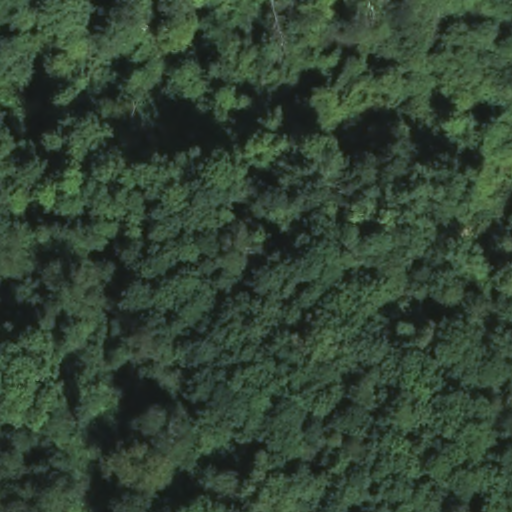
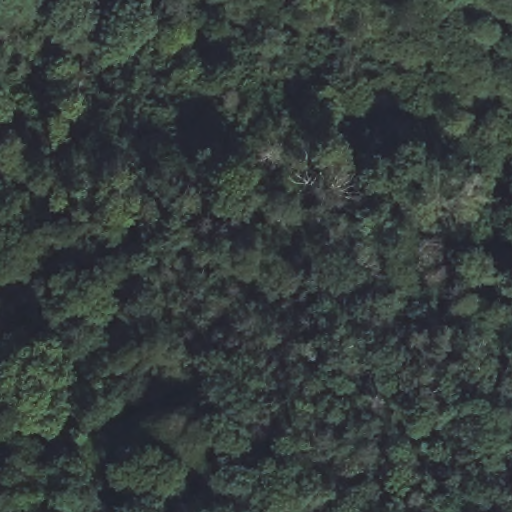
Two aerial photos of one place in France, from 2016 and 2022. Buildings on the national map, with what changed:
unchanged [(37,453),(0,444),(0,425),(40,435),(37,453)]

